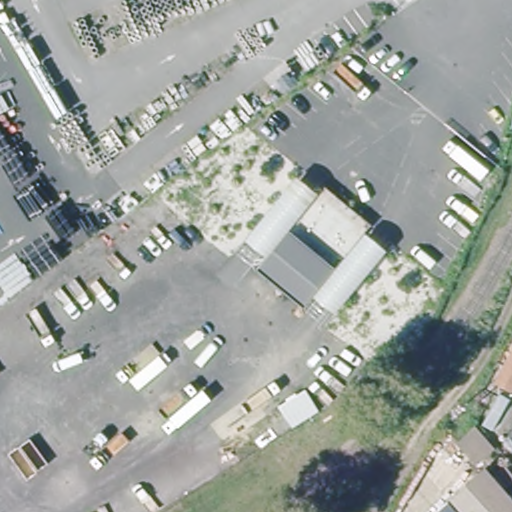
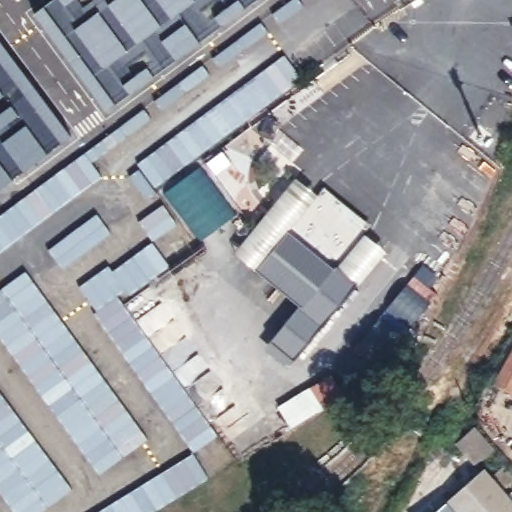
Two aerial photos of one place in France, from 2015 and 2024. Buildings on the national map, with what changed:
new [(109,111),(35,15),(55,0),(262,0),(109,111)]
new [(0,190),(0,40),(73,136),(0,190)]
new [(139,168),(136,164),(284,54),(303,79),(259,113),(153,189),(154,190),(144,198),(128,176),(139,168)]
new [(202,65),(210,75),(163,110),(155,100),(202,65)]
new [(144,109),(151,119),(92,163),(101,176),(0,251),(0,213),(16,201),(144,109)]
new [(200,166),(238,213),(200,241),(164,194),(200,166)]
unchanged [(313,210),(261,270),(239,252),(292,191),(313,210)]
new [(162,205),(176,224),(153,240),(139,220),(162,205)]
unchanged [(313,210),(314,208),(326,218),(332,210),(355,230),(348,237),(360,247),(359,249),(306,310),(261,270),(313,210)]
new [(96,213),(111,232),(61,267),(47,249),(96,213)]
new [(108,265),(112,270),(151,241),(170,266),(121,300),(163,356),(185,388),(218,435),(194,452),(104,326),(79,286),(108,265)]
unchanged [(359,249),(380,267),(328,328),(306,310),(359,249)]
new [(147,438),(99,474),(0,339),(0,288),(25,270),(147,438)]
new [(438,294),(385,358),(376,352),(369,361),(355,350),(416,276),(438,294)]
unchanged [(508,341),(512,334),(512,343),(508,341)]
new [(178,344),(189,358),(197,352),(222,384),(205,398),(196,385),(185,388),(163,356),(178,344)]
unchanged [(500,375),(512,353),(512,381),(500,375)]
new [(292,429),(279,407),(332,375),(345,396),(292,429)]
new [(41,512),(14,512),(0,493),(0,393),(72,490),(41,512)]
unchanged [(483,431),(495,446),(482,458),(470,443),(483,431)]
new [(208,478),(153,512),(96,512),(193,452),(208,478)]
unchanged [(449,512),(443,505),(489,465),(512,491),(512,512),(449,512)]
unchanged [(435,512),(443,505),(449,512),(435,512)]

